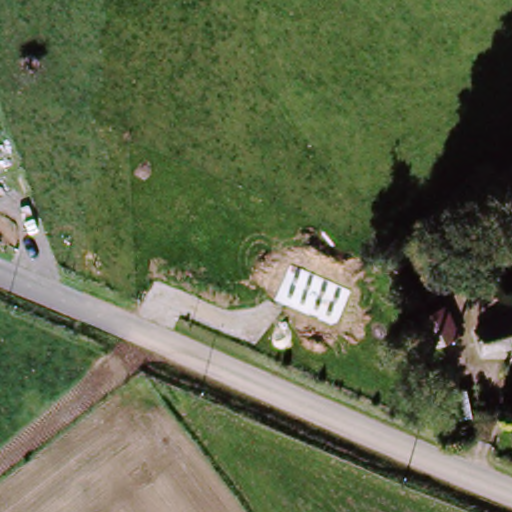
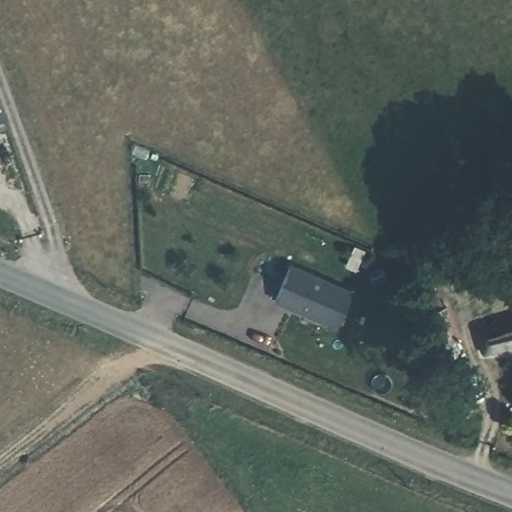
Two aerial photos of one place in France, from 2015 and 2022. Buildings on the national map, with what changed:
unchanged [(508,248),(450,271),(442,251),(500,227),(508,248)]
new [(352,290),(338,322),(330,325),(273,301),(290,263),(352,290)]
unchanged [(472,329),(447,338),(435,309),(440,306),(427,279),(432,277),(430,273),(442,266),(459,303),(462,301),(472,329)]
unchanged [(473,336),(512,325),(512,351),(480,360),(473,336)]
unchanged [(453,412),(448,388),(465,385),(470,409),(453,412)]

